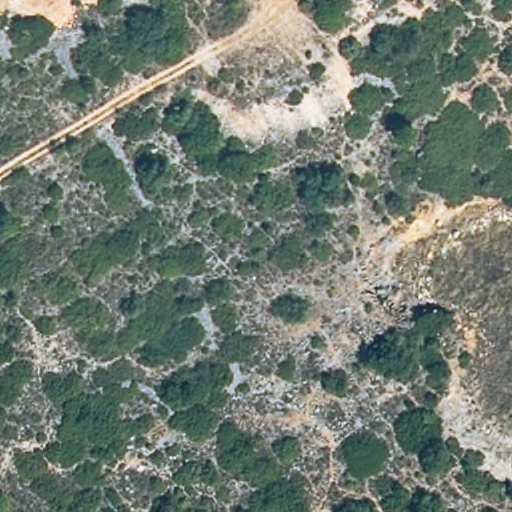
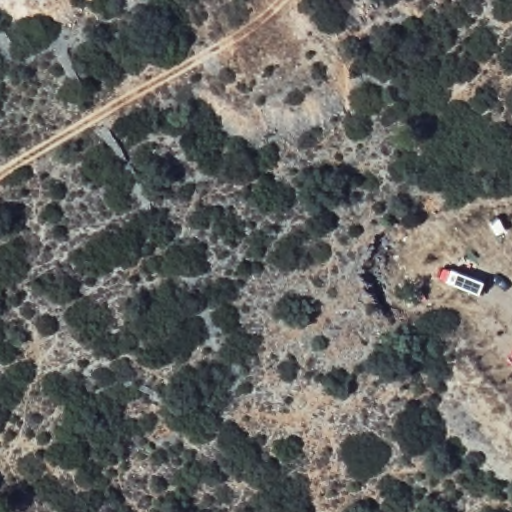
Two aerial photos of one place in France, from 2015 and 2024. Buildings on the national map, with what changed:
[]

